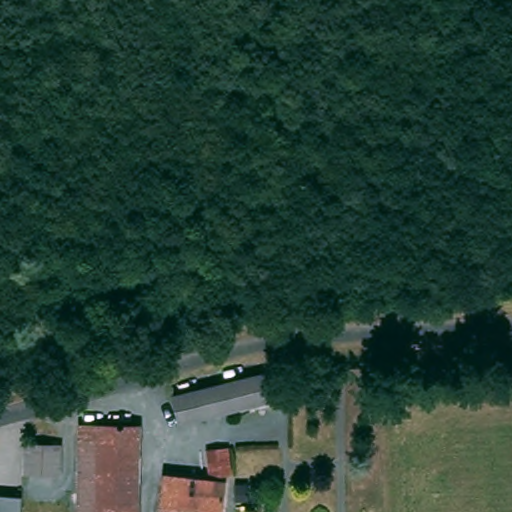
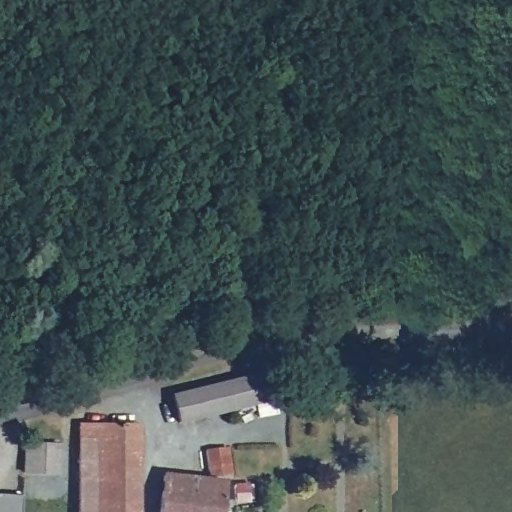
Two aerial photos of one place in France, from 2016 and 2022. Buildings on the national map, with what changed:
unchanged [(272,369),(282,405),(179,424),(172,393),(272,369)]
unchanged [(84,422),(105,422),(105,492),(82,491),(84,422)]
unchanged [(82,498),(82,491),(105,492),(105,422),(139,422),(138,512),(82,512),(82,498)]
unchanged [(77,452),(75,483),(37,481),(39,451),(77,452)]
unchanged [(219,512),(156,512),(159,476),(220,479),(219,512)]
unchanged [(20,499),(18,512),(0,512),(0,497),(20,499)]

